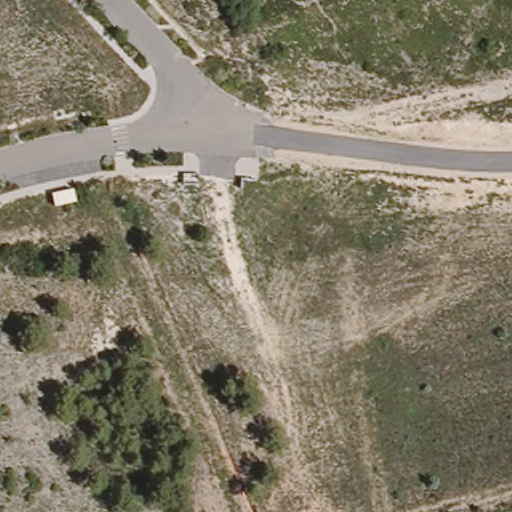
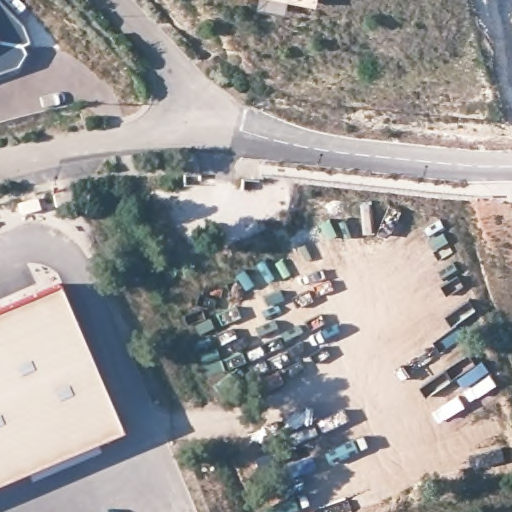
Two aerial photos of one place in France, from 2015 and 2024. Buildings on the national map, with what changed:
unchanged [(24,24),(31,43),(24,47),(27,53),(18,68),(0,74),(0,0),(24,24)]
new [(289,0),(318,0),(317,5),(289,0)]
new [(57,285),(120,432),(0,482),(0,309),(57,285)]

